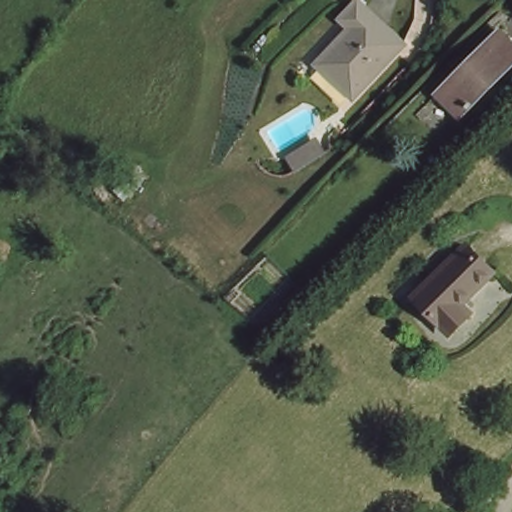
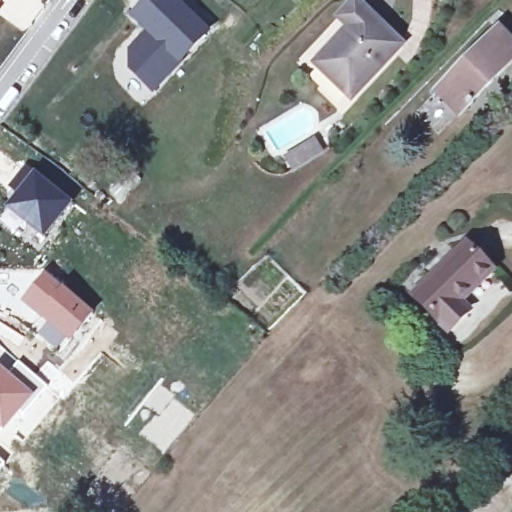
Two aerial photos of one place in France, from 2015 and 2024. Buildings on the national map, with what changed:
new [(0,6),(0,0),(3,0),(0,6)]
new [(153,95),(133,75),(133,58),(151,39),(148,36),(136,23),(159,0),(166,0),(175,9),(207,39),(153,95)]
unchanged [(352,99),(319,66),(353,31),(341,20),(356,4),(403,47),(352,99)]
unchanged [(466,110),(445,90),(496,37),(512,53),(512,64),(466,110)]
new [(316,145),(324,158),(295,176),(287,163),(316,145)]
new [(27,171),(70,206),(43,240),(10,213),(20,199),(11,191),(27,171)]
unchanged [(458,297),(467,306),(446,326),(411,291),(462,239),(489,266),(458,297)]
new [(45,271),(92,311),(55,351),(36,334),(45,323),(20,302),(45,271)]
new [(0,363),(0,346),(8,353),(0,363)]
new [(16,359),(48,385),(3,435),(0,433),(0,363),(8,370),(16,359)]
new [(0,467),(0,456),(6,460),(0,467)]

